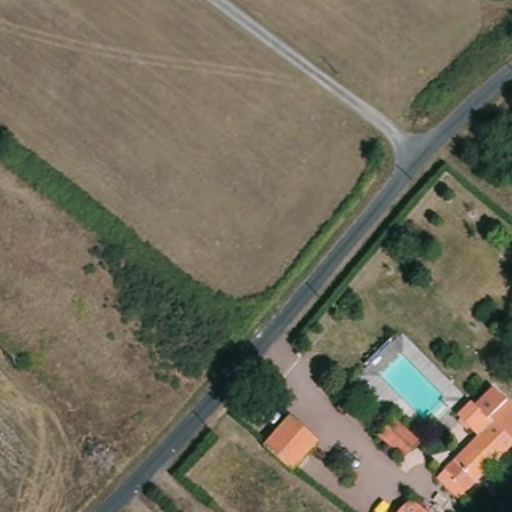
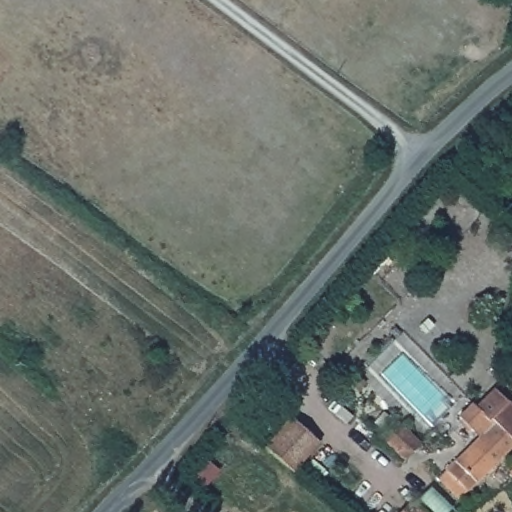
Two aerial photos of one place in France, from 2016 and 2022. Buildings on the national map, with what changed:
unchanged [(490,390),(512,411),(512,451),(510,450),(461,505),(436,483),(477,438),(472,434),(470,437),(454,424),(466,410),(470,413),(490,390)]
unchanged [(389,418),(397,425),(412,438),(422,446),(406,463),(374,436),(389,418)]
unchanged [(287,424),(315,447),(296,474),(265,450),(287,424)]
unchanged [(416,495),(437,512),(401,512),(416,495)]

